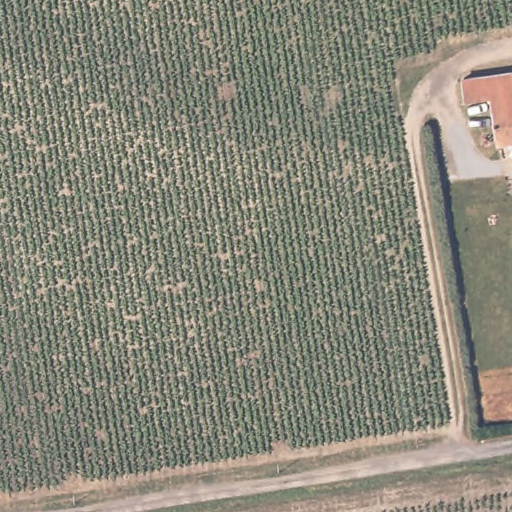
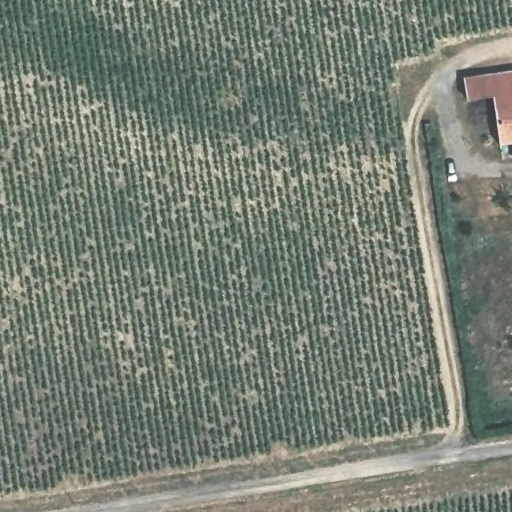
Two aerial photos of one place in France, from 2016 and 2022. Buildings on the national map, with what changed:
unchanged [(491,97),(470,100),(467,80),(512,73),(512,143),(498,145),(491,97)]

